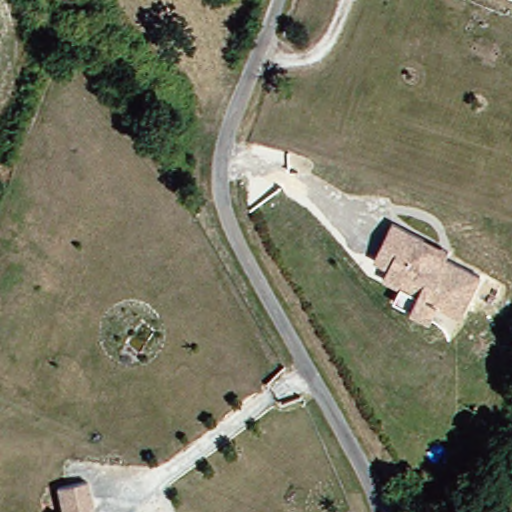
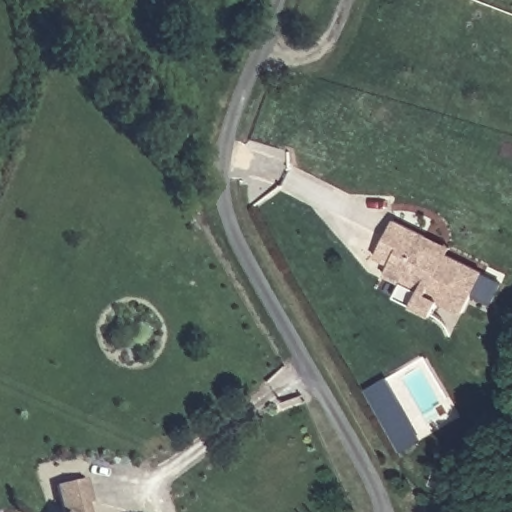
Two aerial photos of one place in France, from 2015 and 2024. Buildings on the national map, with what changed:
unchanged [(460,312),(437,301),(429,315),(393,297),(399,282),(382,275),(386,263),(372,257),(381,239),(389,220),(421,235),(447,246),(444,254),(479,270),(460,312)]
new [(422,440),(401,452),(366,391),(387,380),(422,440)]
unchanged [(68,510),(47,488),(69,467),(86,485),(83,489),(103,512),(66,512),(68,510)]

